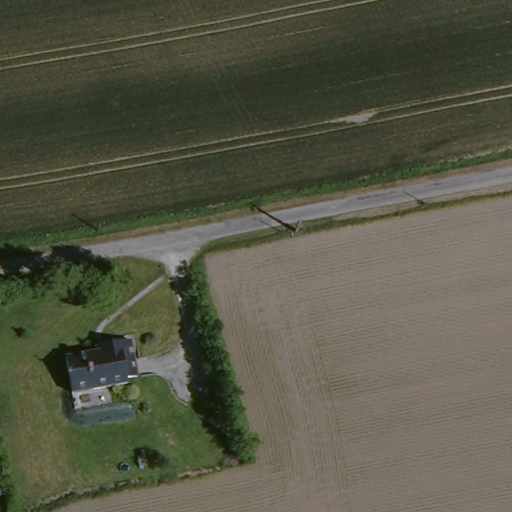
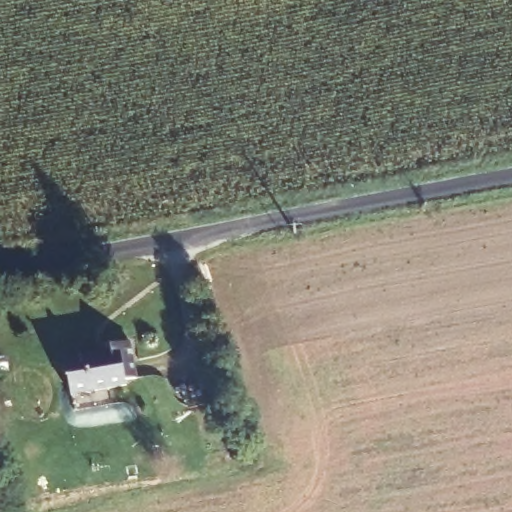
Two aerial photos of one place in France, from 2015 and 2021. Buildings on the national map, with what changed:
unchanged [(137,377),(124,380),(126,388),(73,398),(65,361),(95,356),(94,347),(129,340),(137,377)]

